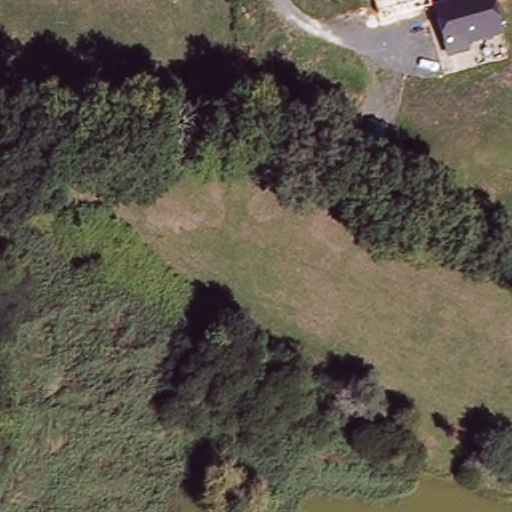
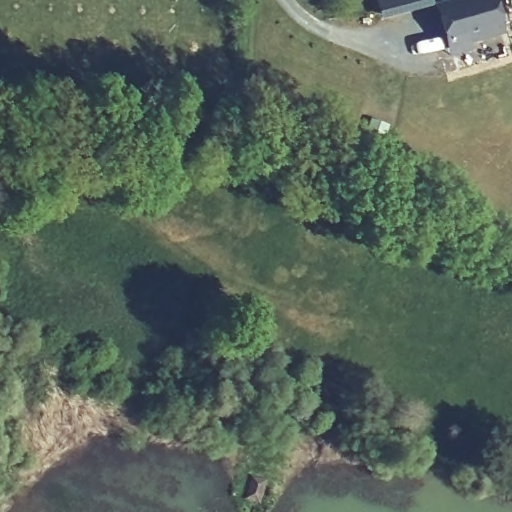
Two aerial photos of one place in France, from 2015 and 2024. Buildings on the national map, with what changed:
unchanged [(443,56),(441,50),(432,6),(459,0),(489,0),(497,36),(460,45),(462,52),(443,56)]
unchanged [(363,155),(348,150),(357,126),(373,132),(363,155)]

